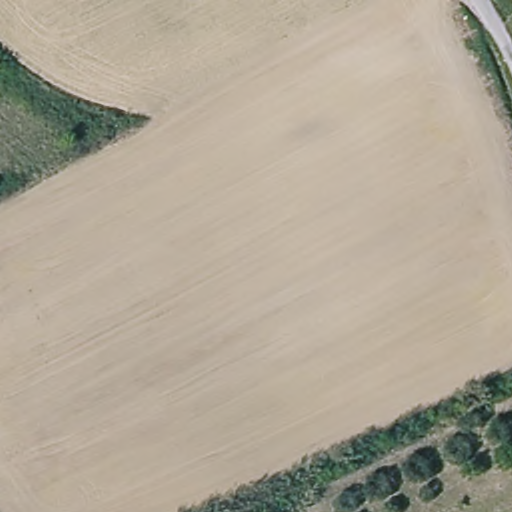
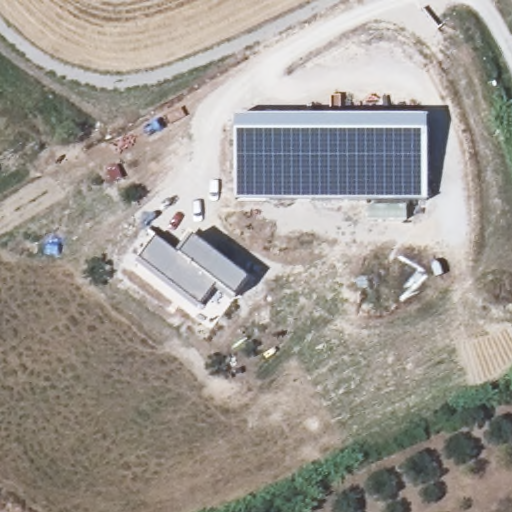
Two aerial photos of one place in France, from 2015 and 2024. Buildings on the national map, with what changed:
new [(234,119),(427,118),(425,199),(233,200),(234,119)]
new [(154,237),(179,255),(193,237),(248,278),(233,298),(216,285),(198,306),(137,259),(154,237)]

